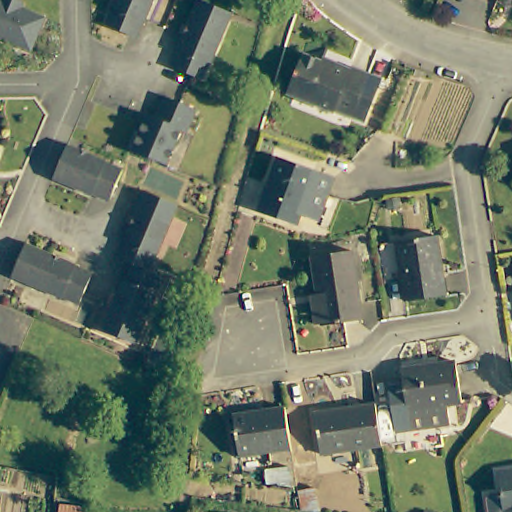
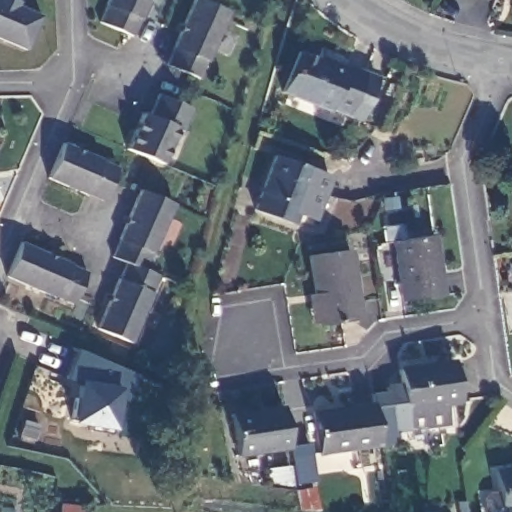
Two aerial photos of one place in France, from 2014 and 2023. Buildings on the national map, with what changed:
unchanged [(25,50),(0,39),(0,0),(1,0),(17,7),(41,17),(25,50)]
unchanged [(131,39),(129,38),(122,35),(97,25),(104,9),(102,8),(105,0),(147,0),(139,20),(137,24),(131,39)]
unchanged [(172,51),(170,51),(171,50),(176,36),(190,0),(195,0),(225,13),(206,64),(205,63),(198,82),(185,77),(165,69),(172,51)]
unchanged [(352,108),(348,119),(329,111),(331,107),(319,103),(312,106),(282,95),(297,56),(315,63),(320,50),(323,51),(317,65),(326,68),(328,64),(345,71),(347,68),(366,76),(352,108)]
unchanged [(182,136),(176,133),(161,168),(127,153),(137,127),(142,117),(148,120),(157,99),(174,106),(192,113),(182,136)]
unchanged [(65,143),(105,161),(105,162),(122,169),(117,182),(109,201),(91,192),(90,192),(89,194),(50,177),(65,143)]
unchanged [(296,216),(294,221),(256,207),(276,153),(332,173),(313,222),(296,216)]
unchanged [(142,189),(177,204),(156,253),(154,252),(147,268),(131,261),(125,259),(116,255),(118,250),(124,239),(122,238),(132,211),(140,193),(142,189)]
unchanged [(398,303),(388,243),(431,238),(440,297),(398,303)]
unchanged [(18,241),(67,263),(68,263),(69,264),(68,264),(67,265),(76,268),(87,273),(79,292),(73,304),(55,296),(54,298),(4,276),(18,241)]
unchanged [(309,295),(304,258),(344,253),(355,322),(313,327),(313,323),(306,323),(302,296),(309,295)]
unchanged [(111,301),(120,279),(121,276),(124,277),(131,261),(147,268),(161,274),(154,291),(157,292),(135,342),(100,327),(110,303),(111,301)]
new [(126,402),(120,399),(115,430),(112,430),(111,435),(90,431),(92,427),(72,423),(77,385),(66,378),(77,349),(137,375),(126,402)]
unchanged [(453,359),(461,401),(446,403),(448,423),(410,429),(400,366),(453,359)]
unchanged [(288,447),(237,455),(231,413),(282,405),(288,447)]
unchanged [(307,416),(367,407),(373,443),(375,448),(313,458),(307,416)]
unchanged [(512,463),(512,512),(488,512),(486,511),(483,494),(487,489),(492,488),(497,487),(493,466),(512,463)]
unchanged [(88,512),(59,512),(60,502),(89,504),(88,512)]
demolished [(197,508),(216,512),(196,512),(197,508)]

